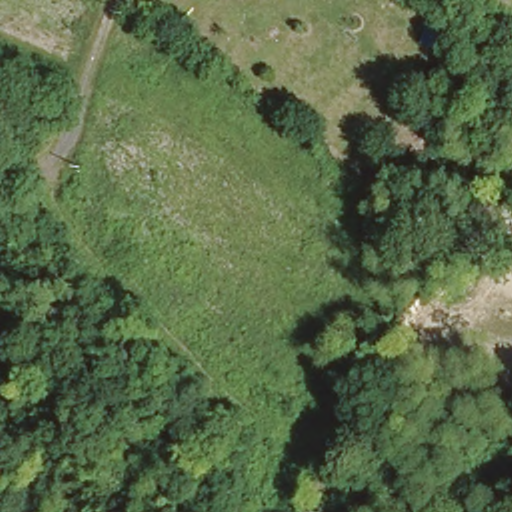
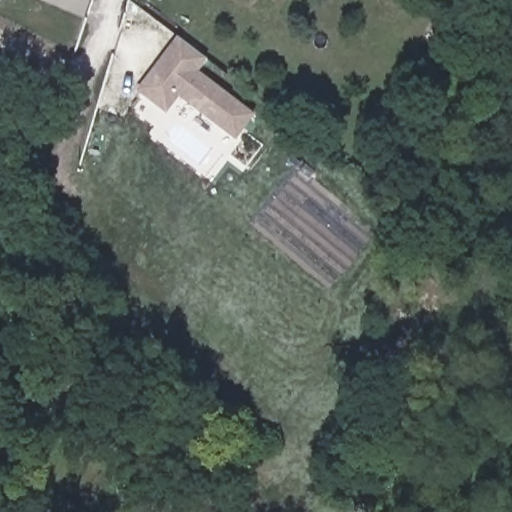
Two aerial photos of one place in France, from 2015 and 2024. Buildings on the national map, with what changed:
new [(239,141),(180,96),(168,112),(138,87),(178,36),(208,58),(198,71),(257,116),(239,141)]

